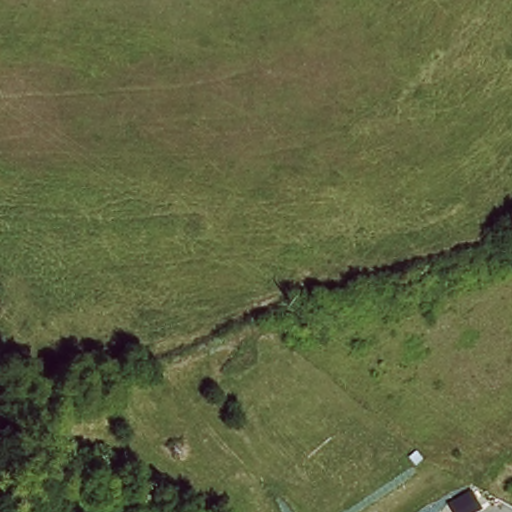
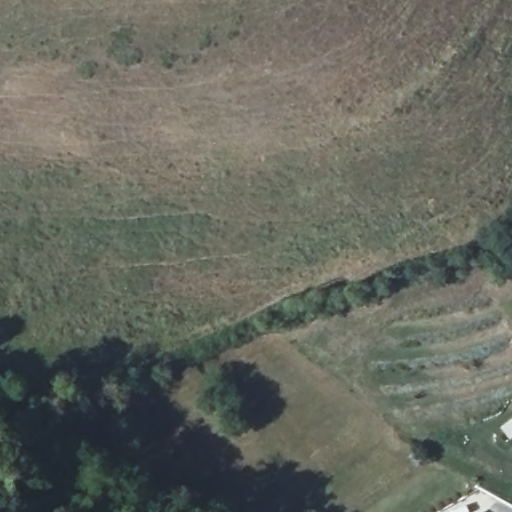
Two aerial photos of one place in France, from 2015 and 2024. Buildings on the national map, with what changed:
[]

